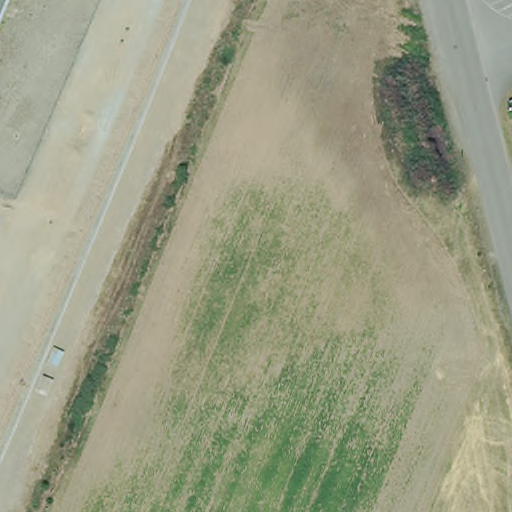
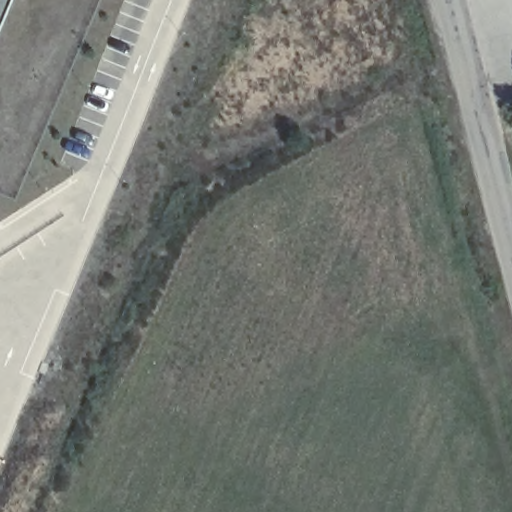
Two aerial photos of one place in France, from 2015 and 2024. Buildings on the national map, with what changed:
unchanged [(2,0),(0,6),(0,0),(2,0)]

